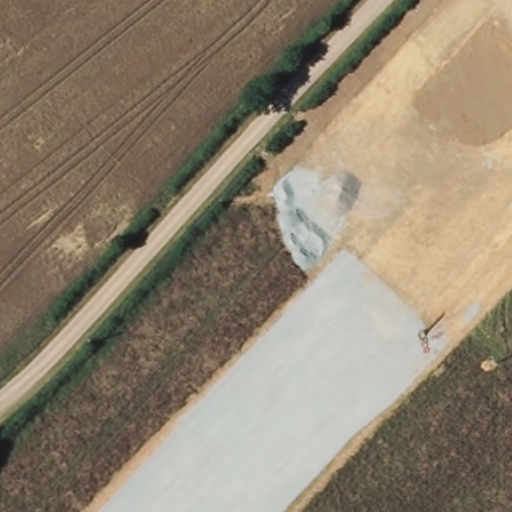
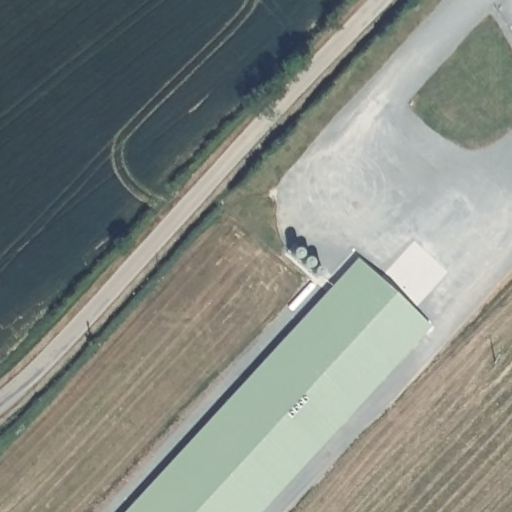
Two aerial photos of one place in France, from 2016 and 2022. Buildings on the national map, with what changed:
new [(259,512),(122,512),(357,259),(431,326),(259,512)]

